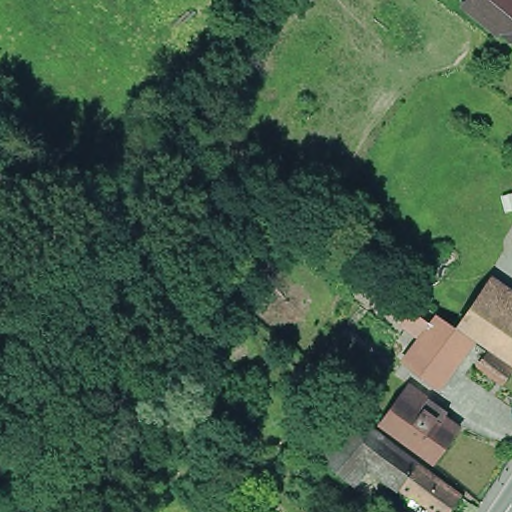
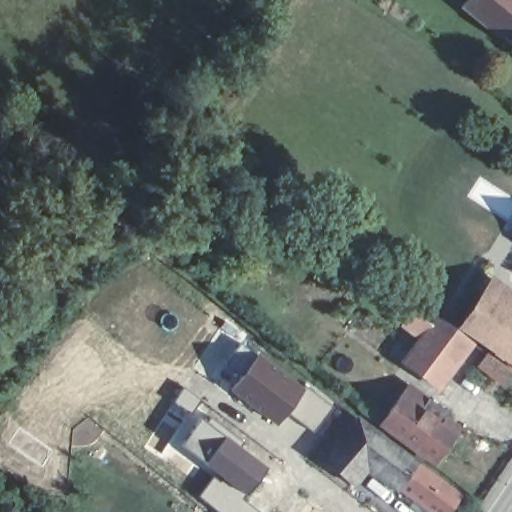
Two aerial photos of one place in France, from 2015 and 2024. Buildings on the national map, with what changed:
unchanged [(467,5),(471,0),(512,0),(512,17),(500,31),(467,5)]
unchanged [(512,17),(512,40),(500,31),(512,17)]
unchanged [(504,112),(492,132),(482,125),(494,105),(504,112)]
unchanged [(449,393),(409,368),(423,343),(405,333),(420,314),(438,323),(444,316),(459,327),(498,276),(512,286),(512,368),(483,347),(449,393)]
new [(256,353),(303,388),(286,412),(275,426),(228,389),(256,353)]
new [(303,388),(306,384),(334,405),(313,432),(286,412),(303,388)]
unchanged [(438,465),(384,424),(404,398),(411,387),(432,402),(451,416),(443,427),(457,437),(438,465)]
new [(198,417),(223,435),(201,465),(175,447),(198,417)]
unchanged [(389,443),(371,466),(371,465),(351,491),(323,469),(360,422),(389,443)]
new [(213,473),(201,465),(223,435),(266,468),(243,498),(260,512),(217,512),(197,495),(213,473)]
unchanged [(419,467),(404,489),(371,466),(389,443),(419,467)]
unchanged [(414,507),(419,501),(404,489),(419,467),(464,499),(455,512),(434,512),(432,510),(430,512),(420,512),(414,507)]

